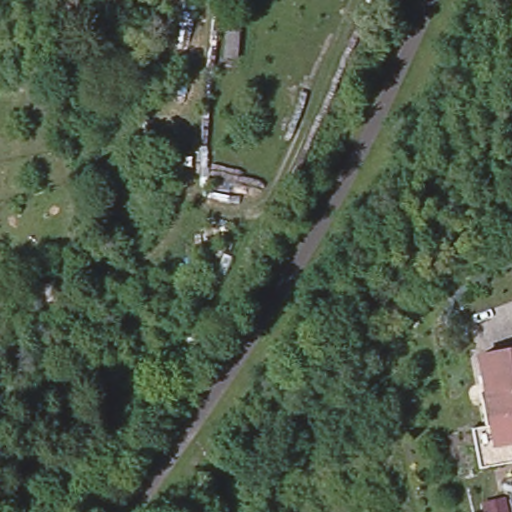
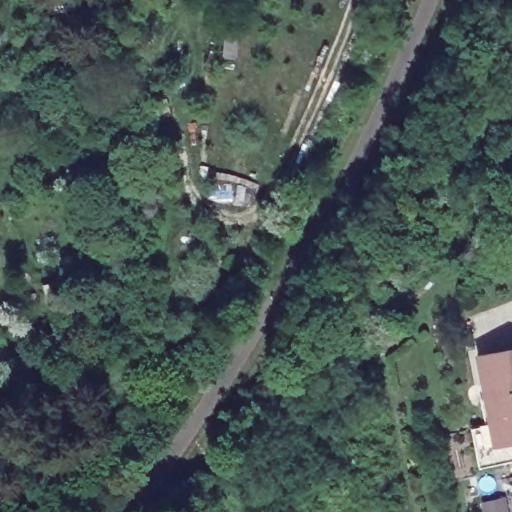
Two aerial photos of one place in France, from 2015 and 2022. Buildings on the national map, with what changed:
unchanged [(493,444),(489,424),(477,356),(512,349),(512,440),(493,444)]
unchanged [(493,444),(512,440),(512,460),(478,466),(469,428),(489,424),(493,444)]

